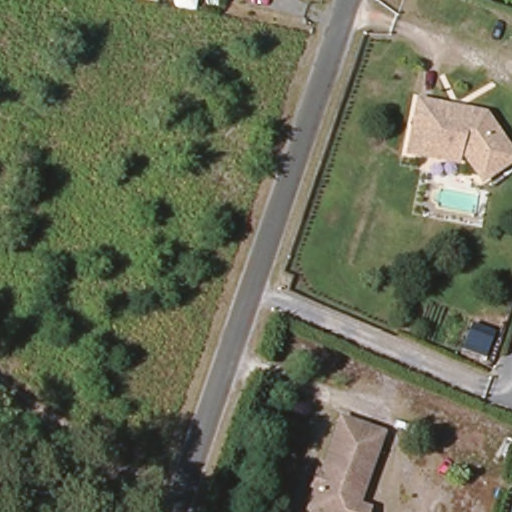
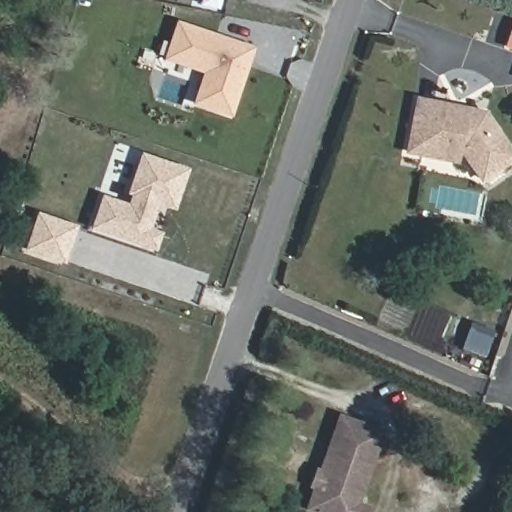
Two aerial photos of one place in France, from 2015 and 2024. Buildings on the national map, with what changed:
new [(201,74),(162,60),(176,20),(255,47),(231,116),(192,104),(201,74)]
unchanged [(408,155),(415,122),(418,104),(437,107),(484,117),(512,160),(512,166),(483,184),(461,153),(458,165),(427,159),(408,155)]
new [(101,198),(127,207),(131,194),(127,193),(140,156),(182,171),(171,207),(154,201),(144,230),(156,234),(151,248),(91,227),(101,198)]
new [(35,216),(70,229),(59,261),(24,250),(35,216)]
unchanged [(367,512),(312,512),(310,511),(345,422),(386,440),(358,508),(367,511),(367,512)]

